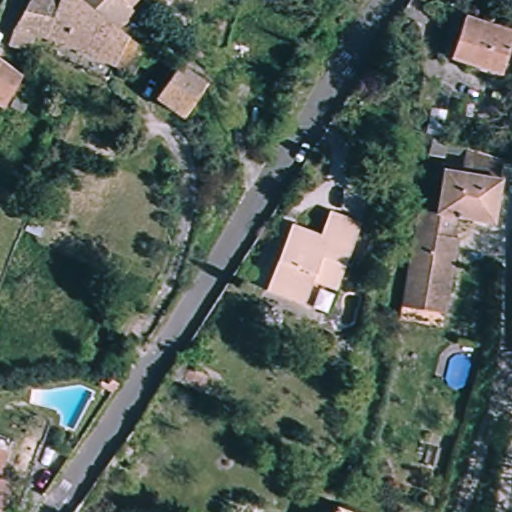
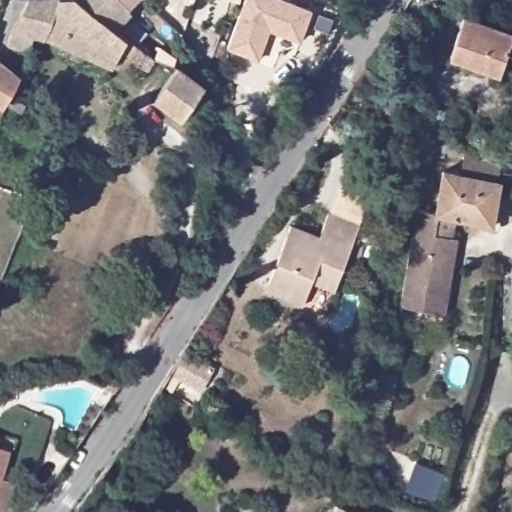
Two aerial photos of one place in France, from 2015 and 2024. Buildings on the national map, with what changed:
unchanged [(13,29),(27,4),(27,0),(80,0),(115,29),(126,37),(155,61),(149,71),(139,65),(134,74),(113,66),(46,37),(34,34),(30,51),(7,46),(13,29)]
unchanged [(129,9),(131,11),(115,29),(80,0),(138,0),(129,9)]
new [(258,59),(228,49),(245,0),(283,0),(310,10),(297,45),(267,36),(258,59)]
unchanged [(502,6),(503,0),(512,0),(512,9),(502,6)]
demolished [(294,7),(314,19),(286,68),(268,58),(294,7)]
unchanged [(501,75),(450,58),(464,17),(512,33),(512,38),(501,75)]
unchanged [(1,59),(20,72),(4,102),(0,100),(0,58),(1,59)]
unchanged [(177,66),(205,86),(183,119),(154,97),(177,66)]
unchanged [(376,73),(365,91),(353,84),(364,67),(376,73)]
unchanged [(12,94),(25,101),(21,108),(8,102),(12,94)]
unchanged [(448,142),(445,157),(429,155),(432,138),(448,142)]
unchanged [(415,303),(417,293),(438,166),(495,175),(488,219),(470,216),(466,236),(471,237),(470,245),(463,286),(458,311),(415,303)]
unchanged [(329,212),(359,224),(356,231),(335,288),(312,280),(303,304),(267,290),(289,229),(291,224),(320,235),(326,219),(329,212)]
unchanged [(44,226),(39,237),(24,230),(29,219),(44,226)]
unchanged [(208,375),(202,386),(171,367),(177,357),(208,375)]
unchanged [(110,380),(117,385),(111,393),(103,388),(110,380)]
unchanged [(4,452),(0,464),(0,451),(4,452)]
unchanged [(9,483),(1,511),(0,511),(0,480),(9,483)]
unchanged [(348,512),(333,512),(335,507),(348,512)]

